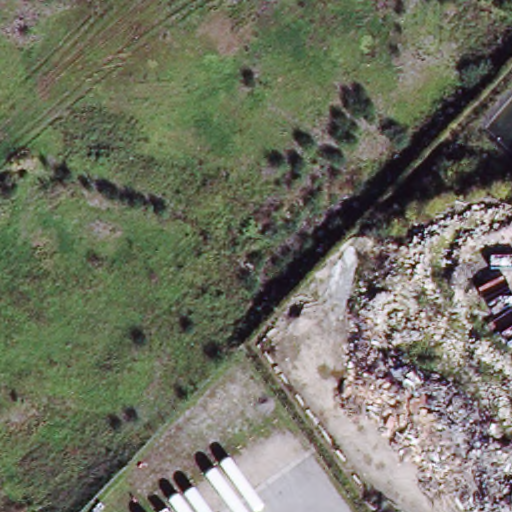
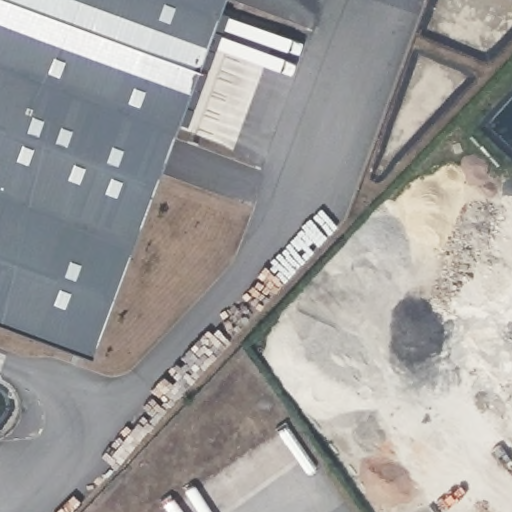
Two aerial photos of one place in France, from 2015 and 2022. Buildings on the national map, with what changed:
new [(86,348),(0,317),(0,0),(214,0),(86,348)]

